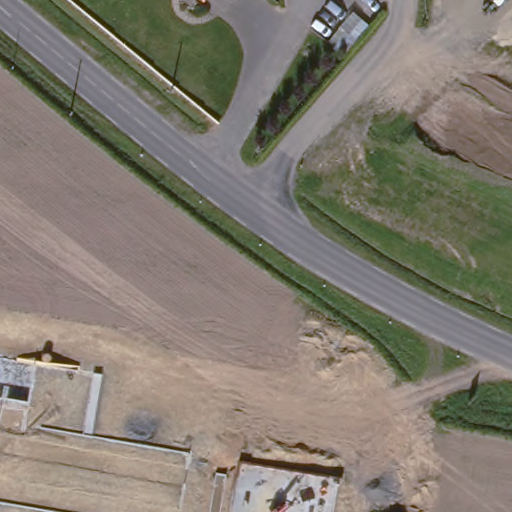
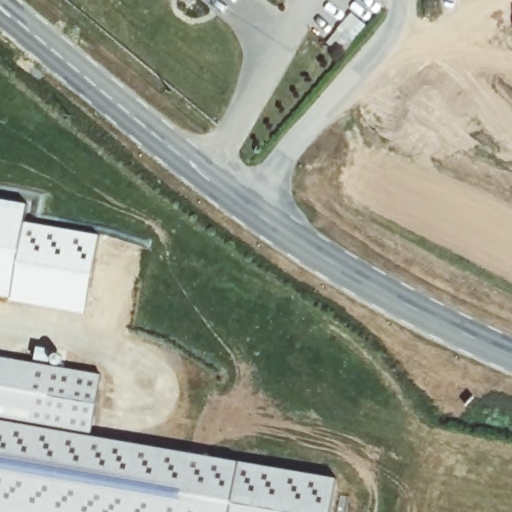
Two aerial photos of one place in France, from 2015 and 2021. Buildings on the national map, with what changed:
new [(0,512),(0,358),(100,374),(91,435),(238,462),(336,479),(331,512),(0,512)]

